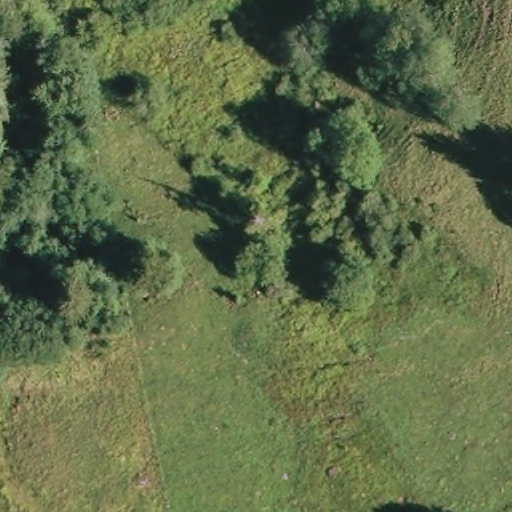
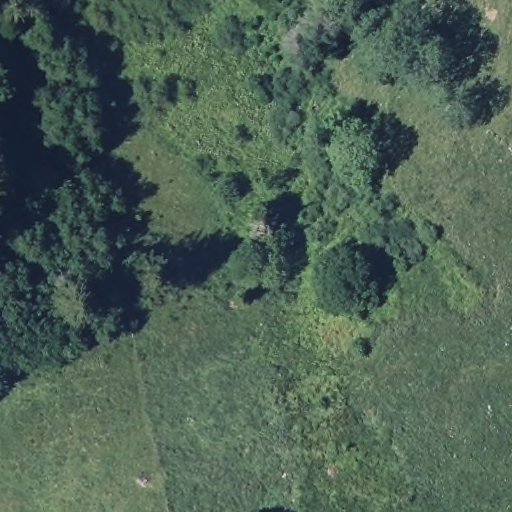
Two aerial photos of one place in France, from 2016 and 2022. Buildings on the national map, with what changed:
[]

